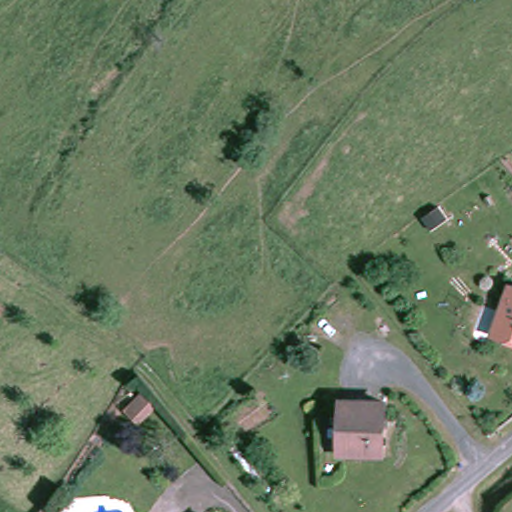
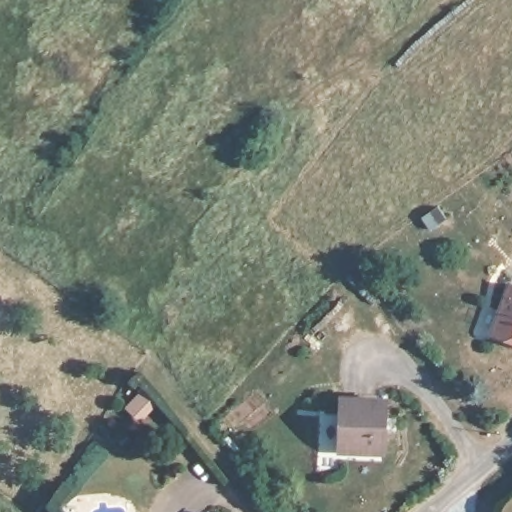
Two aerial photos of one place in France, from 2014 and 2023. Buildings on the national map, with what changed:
unchanged [(512,315),(512,345),(502,341),(512,315)]
unchanged [(391,426),(393,427),(391,453),(348,451),(351,399),(393,401),(391,426)]

